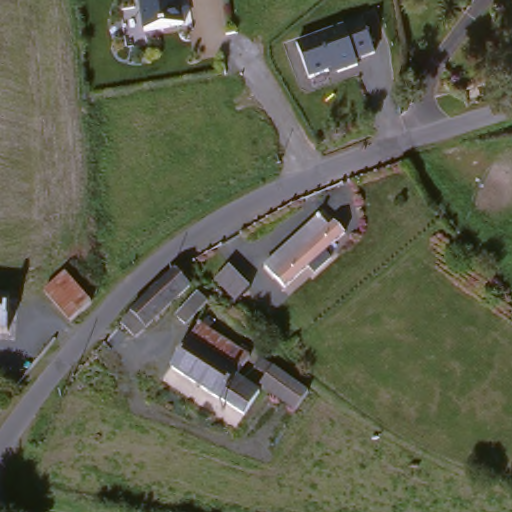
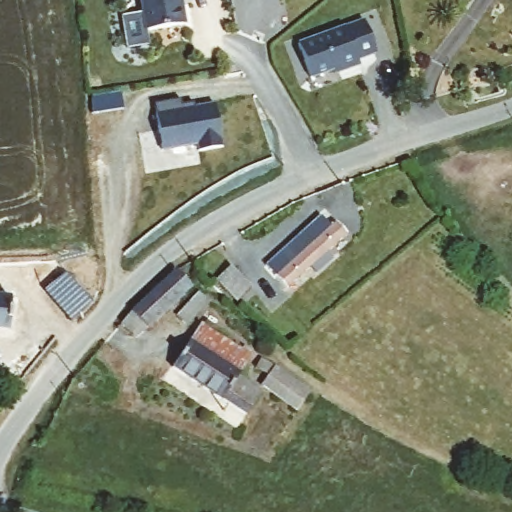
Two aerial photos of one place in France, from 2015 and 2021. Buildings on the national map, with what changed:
unchanged [(139,0),(179,0),(183,26),(144,33),(139,0)]
unchanged [(358,22),(370,52),(354,58),(358,66),(331,74),(330,68),(306,78),(296,45),(358,22)]
new [(181,98),(181,108),(214,103),(222,146),(197,150),(196,143),(161,149),(155,103),(181,98)]
unchanged [(321,218),(329,226),(339,217),(348,230),(284,286),(266,266),(321,218)]
unchanged [(44,287),(61,269),(90,296),(91,297),(74,315),(44,287)]
unchanged [(137,299),(176,271),(193,292),(144,335),(124,313),(137,299)]
unchanged [(4,327),(0,327),(0,293),(9,294),(4,327)]
unchanged [(201,295),(210,304),(189,326),(181,317),(201,295)]
unchanged [(238,411),(219,397),(172,361),(206,322),(244,352),(233,368),(238,372),(256,385),(238,411)]
unchanged [(308,387),(294,404),(264,382),(278,365),(308,387)]

